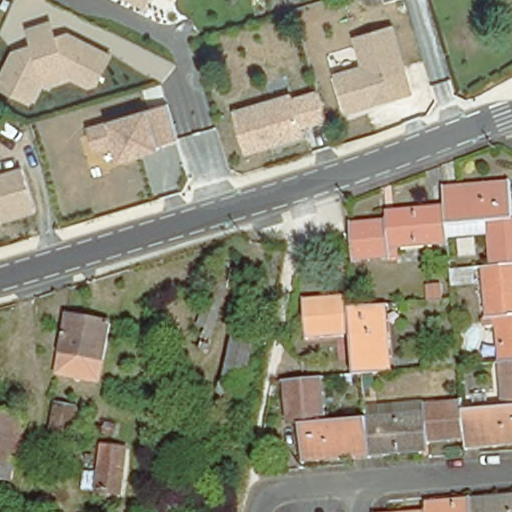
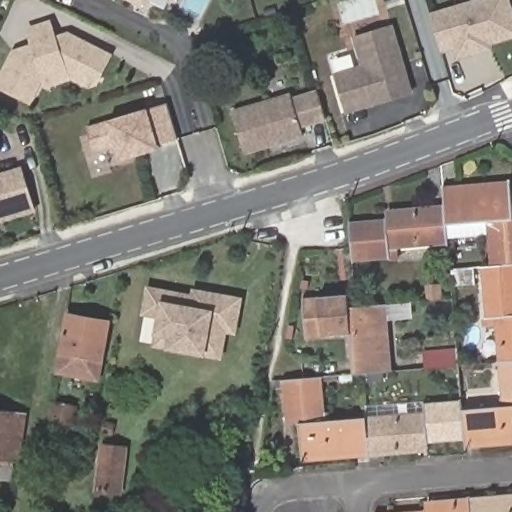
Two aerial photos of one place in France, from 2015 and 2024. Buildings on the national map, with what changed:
unchanged [(47,1),(44,0),(48,0),(47,1)]
unchanged [(147,10),(126,0),(152,0),(147,10)]
new [(512,7),(512,36),(483,44),(485,49),(460,56),(457,46),(442,50),(432,14),(481,0),(510,0),(512,7)]
unchanged [(12,50),(30,43),(25,27),(50,19),(57,34),(67,31),(114,53),(100,85),(90,89),(74,80),(48,89),(41,86),(31,105),(0,89),(0,75),(12,50)]
unchanged [(346,114),(333,73),(361,66),(354,37),(395,25),(415,93),(346,114)]
unchanged [(318,89),(327,120),(302,128),(305,137),(245,155),(231,110),(291,93),(293,98),(318,89)]
unchanged [(94,152),(86,127),(109,120),(149,108),(167,103),(179,138),(160,144),(162,151),(121,162),(116,146),(94,152)]
unchanged [(39,212),(1,225),(0,222),(0,173),(24,166),(39,212)]
unchanged [(510,225),(512,225),(512,264),(487,265),(483,221),(443,225),(441,205),(440,185),(506,179),(510,225)]
unchanged [(389,219),(388,210),(441,205),(443,225),(445,243),(392,248),(393,259),(347,264),(346,250),(343,224),(389,219)]
unchanged [(483,325),(478,266),(487,265),(512,264),(512,360),(505,361),(497,362),(494,324),(483,325)]
new [(167,350),(154,347),(155,336),(159,319),(143,315),(148,286),(191,294),(193,289),(243,297),(236,335),(227,333),(222,359),(206,357),(167,350)]
unchanged [(347,334),(300,337),(297,300),(336,296),(337,308),(351,307),(383,304),(390,371),(360,374),(350,375),(347,334)]
unchanged [(97,380),(56,373),(66,314),(109,322),(97,380)]
unchanged [(456,365),(421,368),(420,351),(455,348),(456,365)]
unchanged [(512,360),(512,444),(463,448),(462,439),(460,407),(502,404),(497,362),(505,361),(512,360)]
unchanged [(302,464),(297,416),(282,418),(280,382),(319,378),(324,424),(365,420),(368,457),(302,464)]
unchanged [(365,420),(418,414),(417,403),(459,399),(460,407),(462,439),(421,442),(421,452),(368,457),(365,420)]
unchanged [(42,453),(45,438),(52,403),(80,409),(73,443),(70,458),(42,453)]
unchanged [(15,462),(12,462),(11,477),(0,476),(0,412),(23,415),(15,462)]
unchanged [(116,493),(92,489),(100,442),(124,446),(116,493)]
unchanged [(512,496),(512,512),(470,512),(469,499),(512,496)]
unchanged [(469,499),(470,512),(433,512),(432,502),(469,499)]

